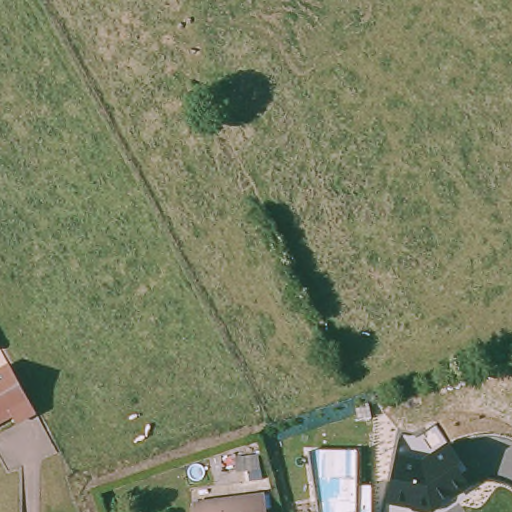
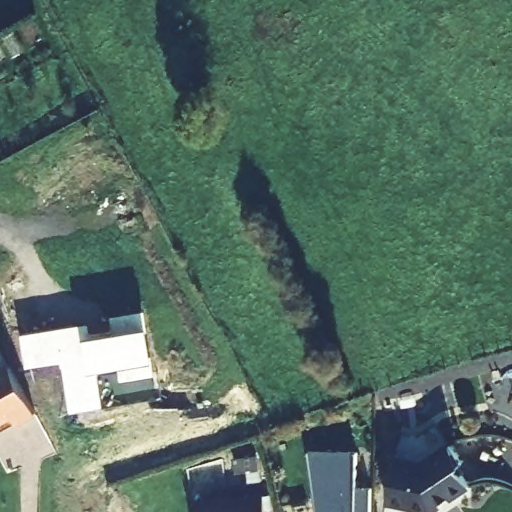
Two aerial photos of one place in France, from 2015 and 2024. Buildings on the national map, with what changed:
new [(92,338),(117,334),(114,316),(143,311),(153,371),(125,376),(122,361),(95,366),(102,403),(72,408),(65,358),(30,364),(25,334),(90,323),(92,338)]
unchanged [(5,364),(32,411),(12,422),(7,414),(0,419),(0,367),(5,364)]
unchanged [(449,441),(477,482),(432,512),(416,512),(385,504),(395,450),(427,457),(449,441)]
unchanged [(357,452),(357,483),(372,485),(371,512),(319,512),(307,449),(357,452)]
unchanged [(263,512),(190,512),(189,501),(262,493),(263,512)]

